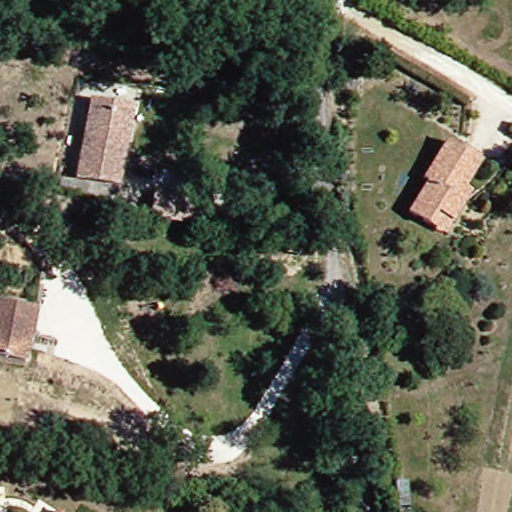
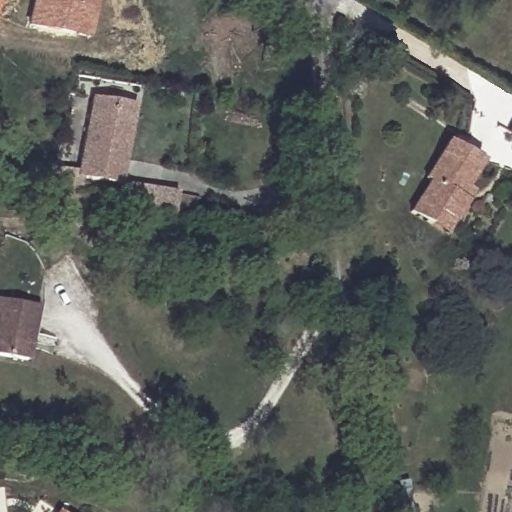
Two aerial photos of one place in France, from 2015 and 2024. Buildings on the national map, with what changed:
new [(28,29),(34,0),(78,0),(70,37),(28,29)]
new [(85,40),(71,37),(78,0),(93,0),(85,40)]
unchanged [(95,99),(138,107),(124,184),(82,175),(95,99)]
unchanged [(432,225),(413,214),(430,182),(425,180),(448,143),(482,162),(467,189),(475,193),(467,206),(457,223),(450,236),(432,225)]
unchanged [(36,311),(44,312),(39,338),(31,336),(25,363),(0,357),(0,302),(36,311)]
unchanged [(59,512),(55,512),(56,510),(59,512)]

